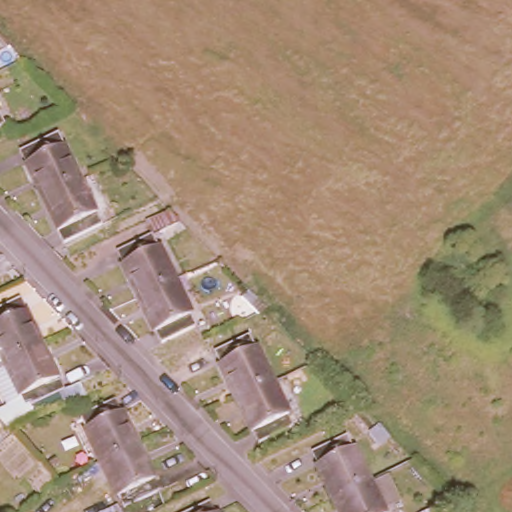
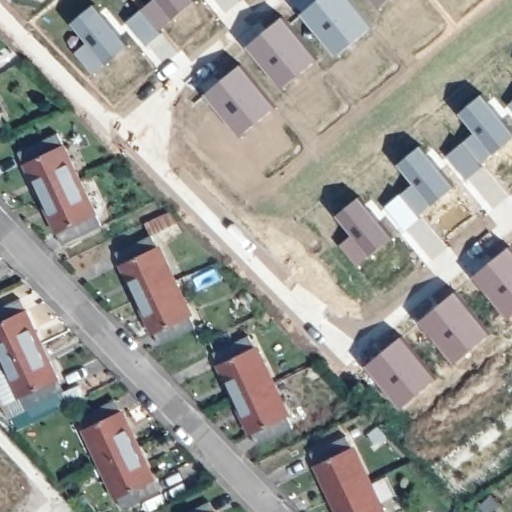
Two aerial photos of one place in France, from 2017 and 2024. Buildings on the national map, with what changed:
new [(143,9),(153,0),(195,0),(174,17),(160,30),(162,32),(147,45),(127,21),(143,9)]
new [(319,0),(352,0),(373,26),(337,56),(302,15),(319,0)]
new [(389,0),(380,8),(373,0),(389,0)]
new [(75,53),(87,42),(72,24),(95,4),(129,45),(106,63),(92,74),(75,53)]
new [(248,46),(285,16),(319,57),(282,87),(248,46)]
new [(207,94),(242,64),(277,105),(242,135),(207,94)]
new [(464,142),(476,132),(460,113),(482,94),(512,130),(512,137),(493,153),(480,164),(482,167),(467,180),(447,155),(464,142)]
new [(512,101),(512,109),(508,105),(512,101)]
unchanged [(45,188),(30,155),(25,145),(62,129),(66,138),(81,171),(45,188)]
new [(385,206),(402,194),(414,184),(398,164),(422,145),(455,185),(432,204),(418,215),(422,218),(406,230),(385,206)]
unchanged [(60,223),(45,188),(81,171),(97,206),(102,217),(66,235),(60,223)]
new [(340,245),(352,235),(337,216),(361,196),(393,237),(370,256),(358,266),(340,245)]
unchanged [(140,294),(125,261),(118,247),(153,230),(160,244),(175,277),(140,294)]
new [(510,246),(512,248),(512,316),(510,317),(475,276),(510,246)]
unchanged [(162,340),(156,328),(140,294),(175,277),(192,311),(197,324),(162,340)]
new [(422,321),(457,290),(492,332),(456,362),(422,321)]
unchanged [(5,357),(0,346),(0,304),(20,295),(26,308),(41,341),(5,357)]
unchanged [(214,347),(250,330),(257,342),(272,376),(237,393),(220,359),(214,347)]
new [(367,365),(403,335),(439,377),(402,407),(367,365)]
unchanged [(27,405),(22,392),(5,357),(41,341),(57,375),(63,388),(27,405)]
unchanged [(252,427),(237,393),(272,376),(289,410),(295,422),(258,440),(252,427)]
unchanged [(105,454),(89,419),(84,408),(120,390),(126,401),(142,437),(105,454)]
unchanged [(337,495),(320,461),(315,450),(350,433),(355,444),(372,478),(337,495)]
unchanged [(127,501),(120,488),(105,454),(142,437),(158,470),(164,483),(127,501)]
unchanged [(337,495),(372,478),(388,512),(345,512),(337,495)]
unchanged [(213,498),(219,510),(220,512),(181,512),(213,498)]

